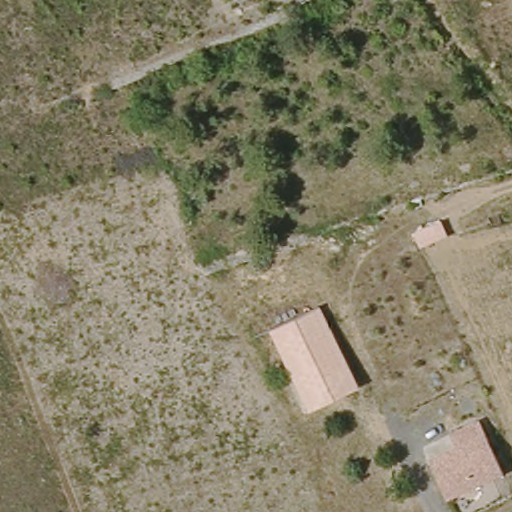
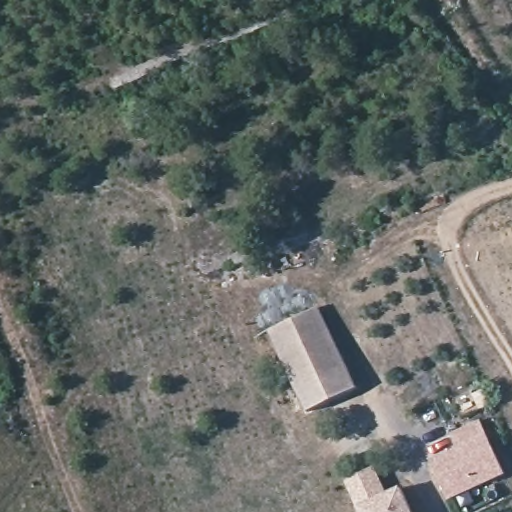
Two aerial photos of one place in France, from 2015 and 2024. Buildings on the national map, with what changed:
unchanged [(324,307),(361,384),(312,410),(274,330),(324,307)]
unchanged [(457,431),(484,418),(512,478),(512,479),(502,484),(503,496),(461,512),(460,512),(437,458),(463,445),(457,431)]
new [(358,512),(343,479),(374,465),(387,493),(400,486),(412,512),(358,512)]

